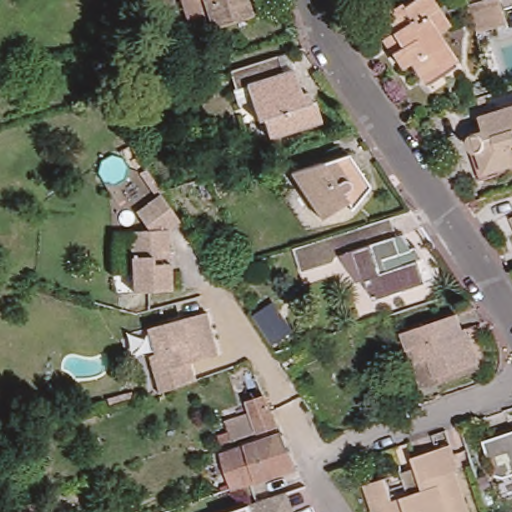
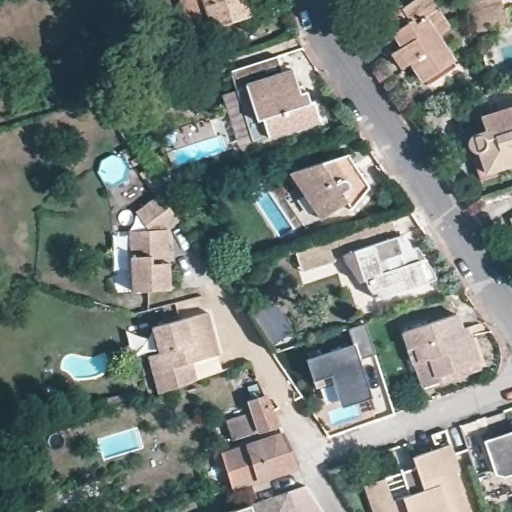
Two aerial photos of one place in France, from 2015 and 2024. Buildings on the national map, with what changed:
unchanged [(208,0),(252,0),(256,14),(216,25),(208,0)]
unchanged [(387,36),(398,29),(387,13),(404,0),(408,4),(413,0),(433,0),(449,24),(439,31),(454,55),(426,75),(416,59),(411,61),(406,65),(387,36)]
unchanged [(508,20),(477,29),(468,1),(472,0),(512,0),(512,18),(508,20)]
unchanged [(257,90),(236,97),(231,80),(227,65),(276,50),(286,47),(291,64),(296,83),(304,81),(308,94),(312,94),(319,114),(269,129),(257,90)]
unchanged [(486,180),(476,142),(476,138),(478,134),(481,132),(489,129),(486,115),(512,108),(512,171),(486,180)]
unchanged [(351,156),(374,190),(346,200),(351,210),(323,219),(291,174),(351,156)]
unchanged [(174,224),(163,230),(166,290),(128,292),(126,232),(146,231),(132,211),(154,196),(174,224)]
unchanged [(509,220),(512,218),(512,225),(509,220)]
unchanged [(382,293),(378,295),(363,273),(361,267),(356,269),(353,273),(321,284),(313,260),(351,247),(355,246),(362,245),(411,229),(417,247),(423,246),(457,293),(402,310),(395,312),(382,293)]
unchanged [(216,350),(189,357),(193,373),(160,385),(153,387),(143,351),(154,348),(148,323),(204,306),(216,350)]
unchanged [(447,374),(421,383),(413,360),(421,357),(409,322),(458,307),(465,329),(476,326),(486,354),(477,356),(479,363),(447,374)]
unchanged [(266,309),(284,335),(269,345),(251,318),(266,309)]
new [(341,407),(334,383),(317,388),(314,380),(308,359),(354,342),(349,330),(366,323),(375,353),(360,358),(371,397),(341,407)]
unchanged [(249,397),(269,390),(284,419),(264,426),(236,435),(229,415),(254,407),(249,397)]
unchanged [(304,460),(299,461),(241,481),(229,448),(289,428),(304,460)]
unchanged [(502,471),(497,470),(488,445),(512,436),(512,468),(502,471)]
unchanged [(365,485),(386,477),(394,500),(410,495),(407,487),(403,472),(418,467),(414,456),(453,443),(458,460),(454,462),(470,512),(374,512),(365,485)]
unchanged [(289,485),(299,512),(215,512),(278,489),(289,485)]
unchanged [(32,506),(34,512),(15,512),(32,506)]

